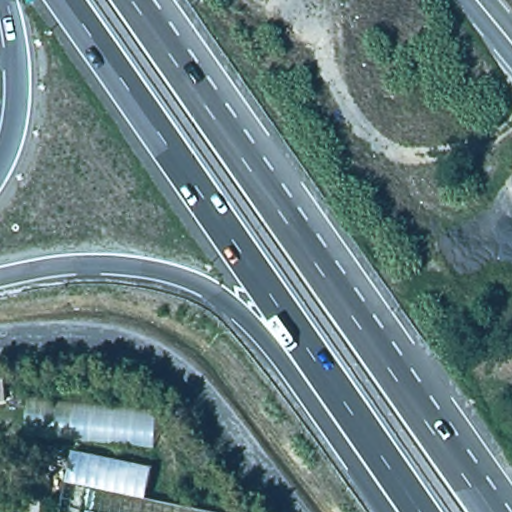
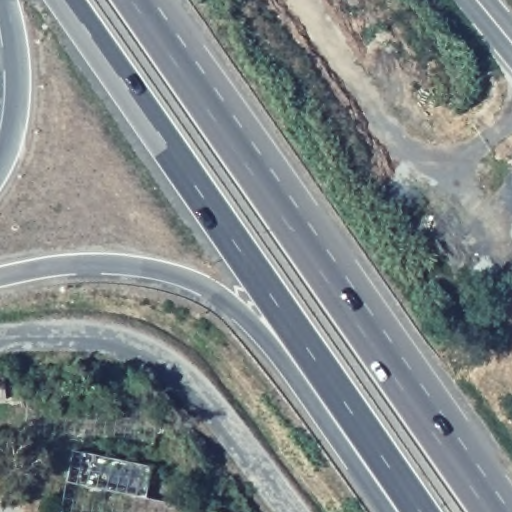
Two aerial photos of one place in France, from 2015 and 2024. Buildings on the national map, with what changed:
unchanged [(157,407),(156,441),(21,430),(25,395),(157,407)]
unchanged [(152,465),(149,496),(232,512),(59,512),(72,450),(152,465)]

